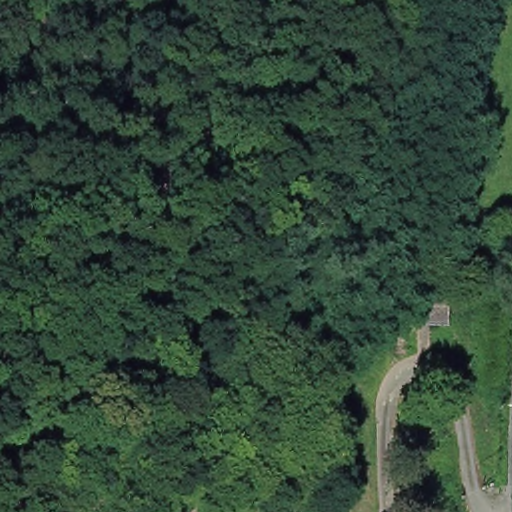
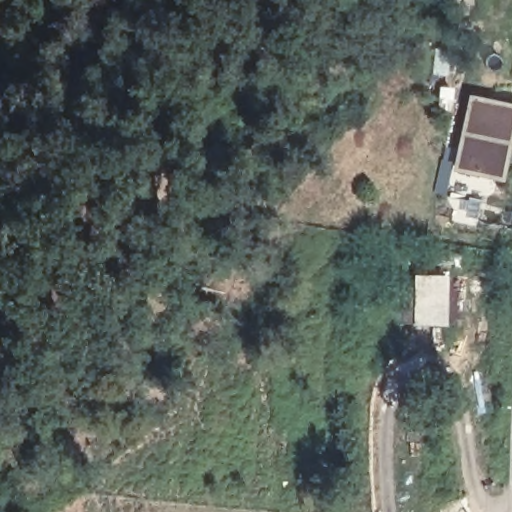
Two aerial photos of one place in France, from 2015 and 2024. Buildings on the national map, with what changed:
new [(505,184),(452,172),(468,95),(512,104),(512,152),(505,184)]
unchanged [(418,327),(406,326),(406,296),(407,291),(419,292),(420,278),(453,280),(451,302),(450,327),(418,327)]

